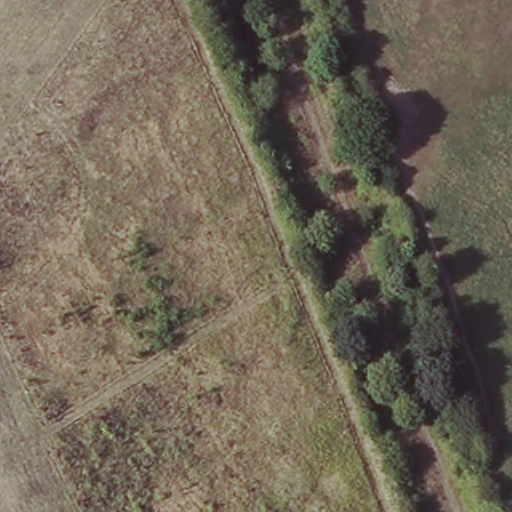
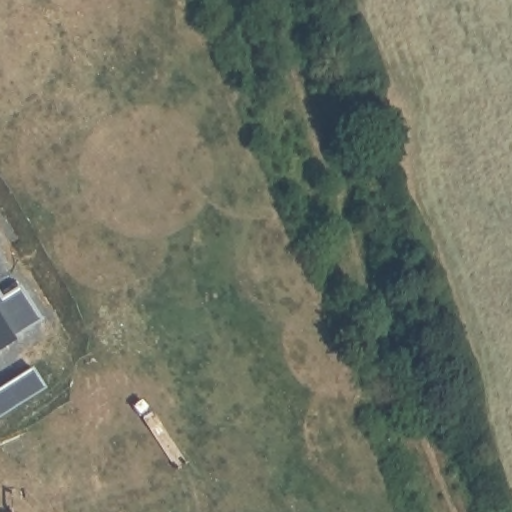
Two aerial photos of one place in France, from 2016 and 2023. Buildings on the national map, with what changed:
new [(2,300),(19,290),(40,321),(13,337),(15,341),(0,351),(0,298),(2,300)]
new [(32,370),(44,388),(0,419),(0,390),(32,370)]

